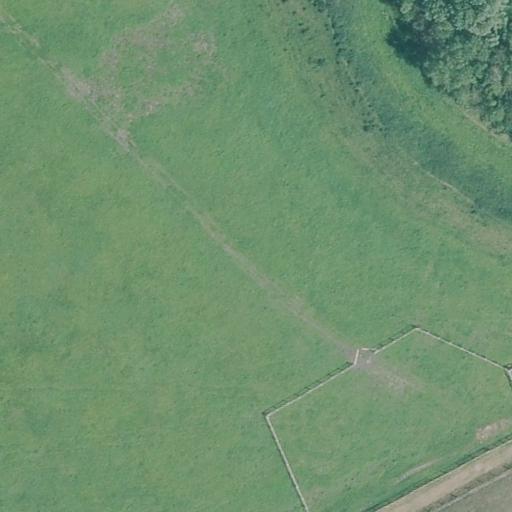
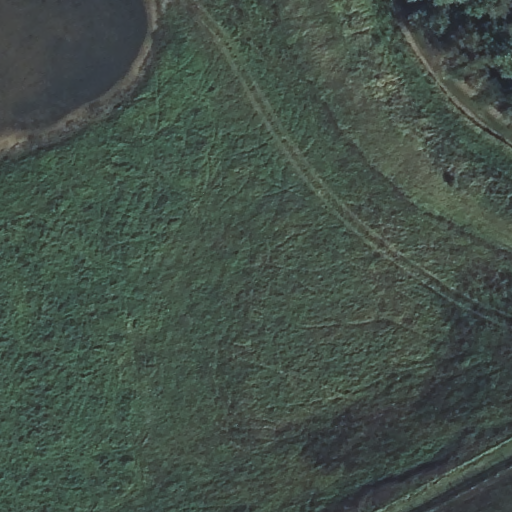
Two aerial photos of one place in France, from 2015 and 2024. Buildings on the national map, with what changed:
[]

